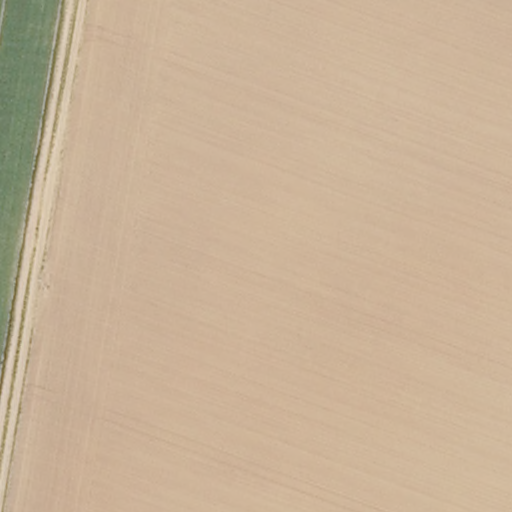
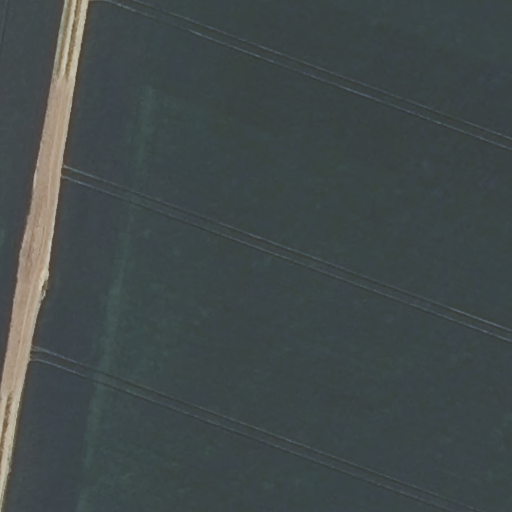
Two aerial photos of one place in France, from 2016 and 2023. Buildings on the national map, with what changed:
[]

